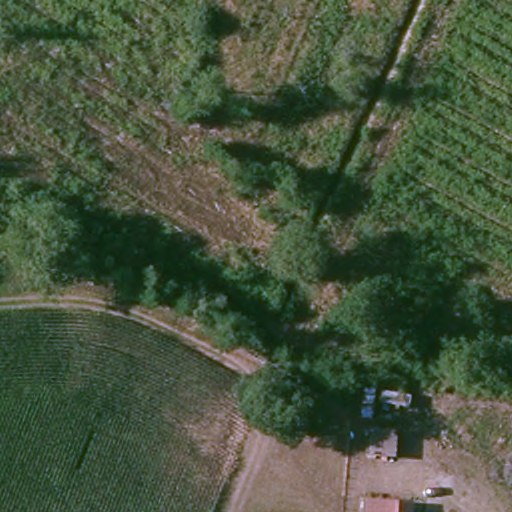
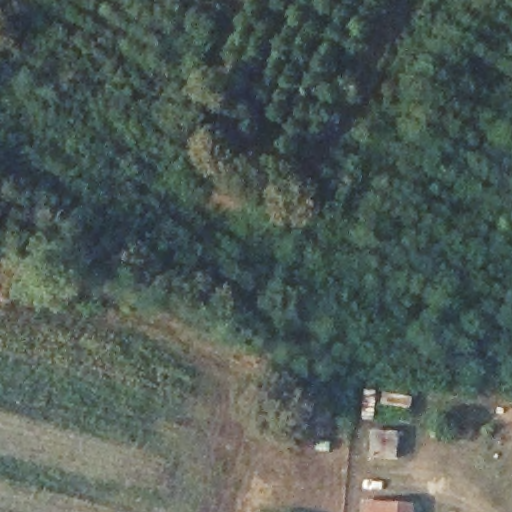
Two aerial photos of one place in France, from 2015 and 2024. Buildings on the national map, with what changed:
unchanged [(409,504),(408,512),(361,512),(362,503),(409,504)]

